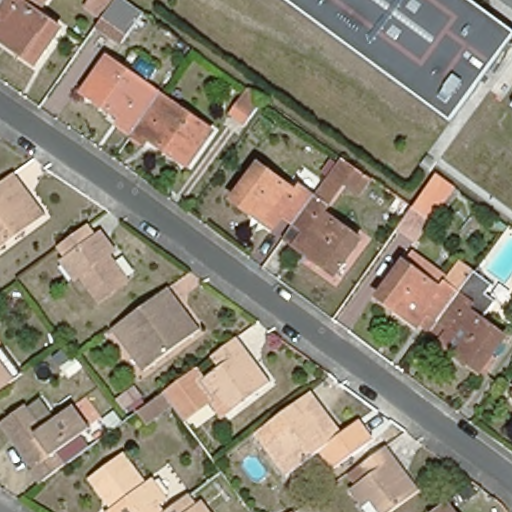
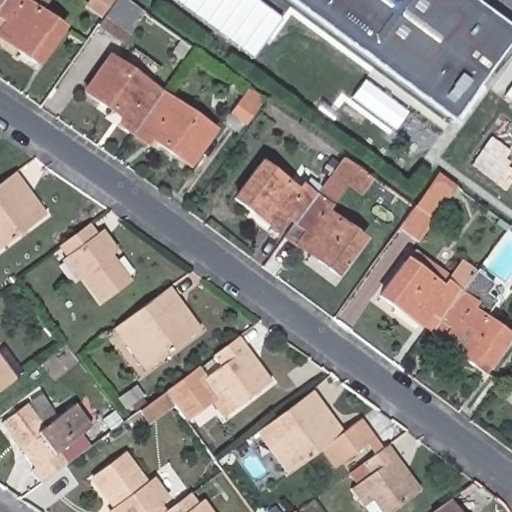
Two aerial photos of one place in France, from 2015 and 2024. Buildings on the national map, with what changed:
unchanged [(59,34),(36,70),(18,58),(0,44),(0,0),(26,0),(21,7),(59,34)]
unchanged [(96,26),(103,18),(87,7),(92,0),(115,0),(114,0),(139,18),(121,44),(96,26)]
new [(251,59),(173,0),(256,0),(280,19),(251,59)]
unchanged [(453,120),(289,0),(469,0),(512,32),(512,43),(453,120)]
unchanged [(122,66),(118,70),(138,85),(141,81),(154,89),(168,99),(165,104),(185,118),(189,114),(206,126),(181,160),(144,134),(140,139),(125,129),(113,121),(117,115),(80,89),(104,54),(122,66)]
unchanged [(228,114),(242,93),(246,86),(247,86),(263,98),(259,104),(245,124),(228,114)]
new [(508,105),(512,100),(512,108),(508,105)]
unchanged [(339,150),(375,177),(363,197),(345,185),(326,207),(308,193),(339,150)]
unchanged [(294,223),(293,223),(282,214),(274,225),(272,229),(251,214),(232,201),(257,166),(297,194),(301,188),(308,193),(312,196),(326,207),(322,212),(360,239),(336,274),(318,261),(297,247),(284,238),(294,223)]
unchanged [(30,195),(45,217),(0,249),(0,184),(15,173),(24,184),(22,185),(30,195)]
unchanged [(464,193),(454,212),(448,208),(418,245),(401,232),(438,177),(464,193)]
unchanged [(95,244),(102,239),(115,255),(108,261),(113,268),(127,286),(100,306),(80,280),(75,284),(62,267),(68,263),(60,253),(87,233),(95,244)]
unchanged [(426,334),(429,330),(428,330),(414,320),(412,324),(392,309),(375,297),(400,262),(436,289),(441,283),(455,293),(456,294),(472,270),(490,283),(483,293),(494,300),(479,320),(501,336),(476,370),(458,357),(439,344),(426,334)]
unchanged [(182,310),(196,331),(145,368),(120,333),(115,326),(129,316),(167,289),(175,300),(182,310)]
unchanged [(196,371),(203,381),(222,366),(215,357),(240,338),(248,349),(259,365),(272,383),(237,408),(225,392),(188,419),(166,392),(196,371)]
unchanged [(22,374),(0,389),(0,349),(3,347),(22,374)]
unchanged [(326,415),(341,434),(289,472),(264,438),(257,429),(271,419),(309,393),(319,405),(326,415)]
unchanged [(171,410),(150,428),(140,415),(163,399),(171,410)]
unchanged [(32,466),(20,449),(21,449),(13,437),(1,420),(24,403),(36,421),(34,422),(39,429),(69,407),(86,430),(55,452),(64,464),(38,483),(29,469),(32,466)]
unchanged [(393,457),(405,473),(418,490),(389,512),(367,512),(348,488),(353,484),(346,475),(384,446),(393,457)]
unchanged [(87,473),(119,450),(141,479),(147,476),(158,492),(150,498),(159,509),(157,511),(156,512),(107,512),(104,508),(110,504),(105,497),(87,473)]
unchanged [(157,511),(159,509),(180,494),(183,492),(190,503),(195,499),(205,512),(156,512),(157,511)]
unchanged [(451,505),(452,504),(458,512),(441,512),(451,505)]
unchanged [(291,511),(292,512),(289,512),(291,511)]

